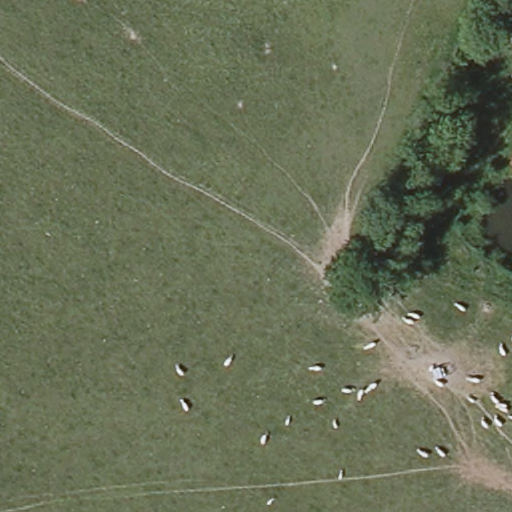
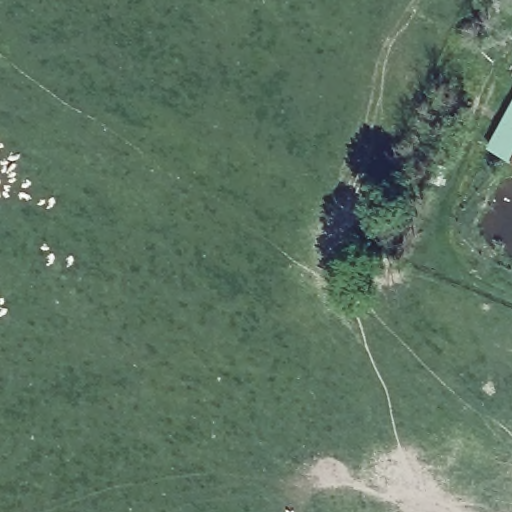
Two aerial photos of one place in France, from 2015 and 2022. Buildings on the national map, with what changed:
new [(512,75),(512,76),(511,76),(512,75)]
new [(512,99),(512,155),(510,158),(485,146),(512,99)]
unchanged [(512,159),(510,158),(512,155),(512,159)]

